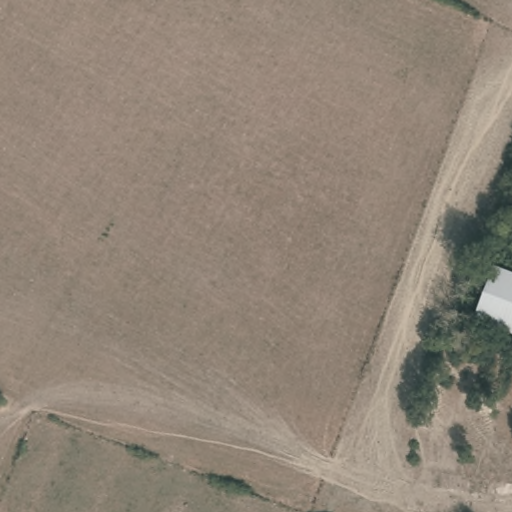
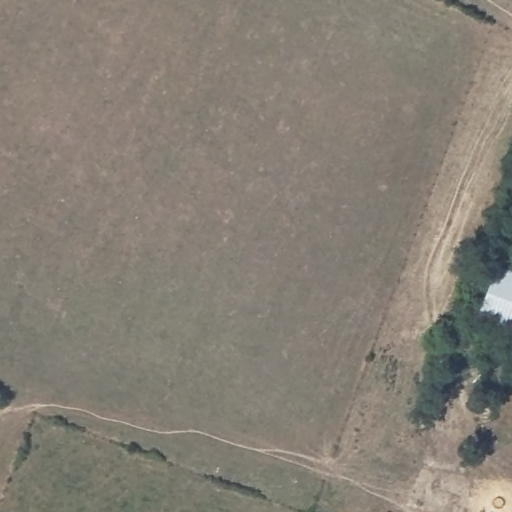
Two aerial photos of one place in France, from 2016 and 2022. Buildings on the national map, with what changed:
unchanged [(475,320),(495,266),(512,272),(512,334),(475,320)]

